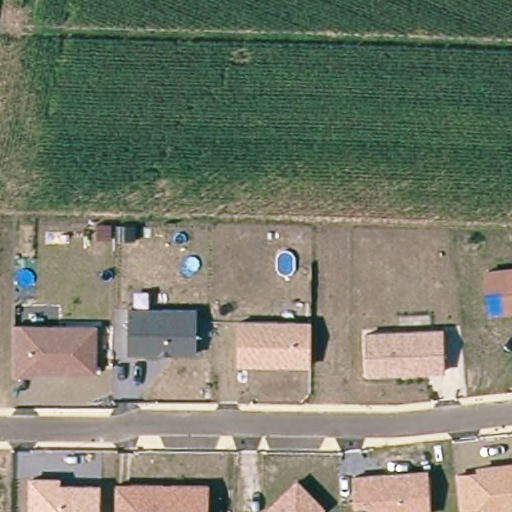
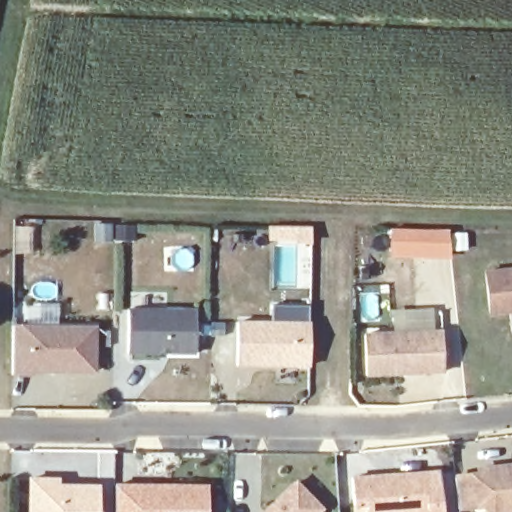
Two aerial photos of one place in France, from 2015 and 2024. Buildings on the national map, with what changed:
new [(450,231),(451,260),(390,258),(391,230),(450,231)]
unchanged [(483,271),(512,267),(512,313),(490,315),(483,271)]
unchanged [(128,355),(127,308),(196,308),(197,355),(128,355)]
unchanged [(312,368),(240,368),(237,322),(311,322),(312,368)]
unchanged [(96,371),(16,369),(15,323),(96,324),(96,371)]
unchanged [(445,374),(367,377),(364,334),(442,330),(445,374)]
unchanged [(512,512),(484,512),(478,507),(459,511),(456,472),(512,464),(512,512)]
unchanged [(432,512),(370,512),(370,509),(354,508),(351,476),(425,471),(432,512)]
unchanged [(27,476),(62,477),(62,483),(100,484),(100,512),(27,512),(27,476)]
unchanged [(326,508),(323,512),(264,512),(297,481),(326,508)]
unchanged [(209,512),(117,512),(117,483),(210,482),(209,512)]

